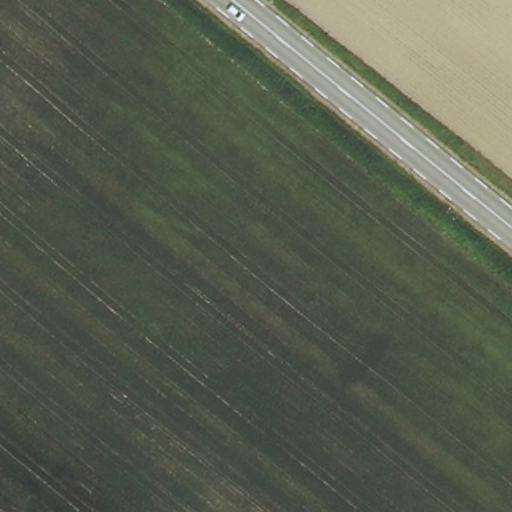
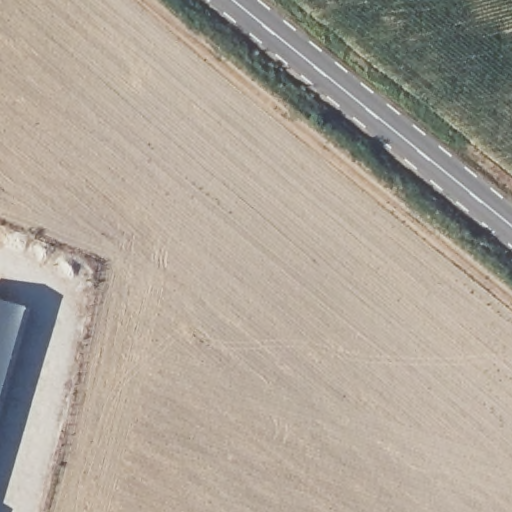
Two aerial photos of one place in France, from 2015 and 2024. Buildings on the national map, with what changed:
new [(24,309),(0,391),(0,302),(24,309)]

